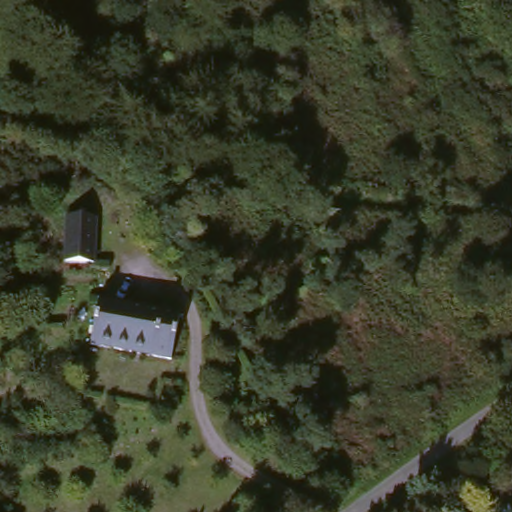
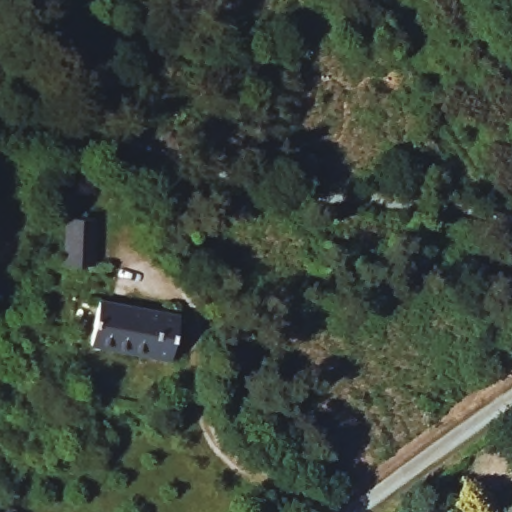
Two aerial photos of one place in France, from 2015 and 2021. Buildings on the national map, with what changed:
unchanged [(72,212),(101,213),(99,259),(70,258),(72,212)]
unchanged [(109,300),(190,315),(181,359),(101,344),(109,300)]

